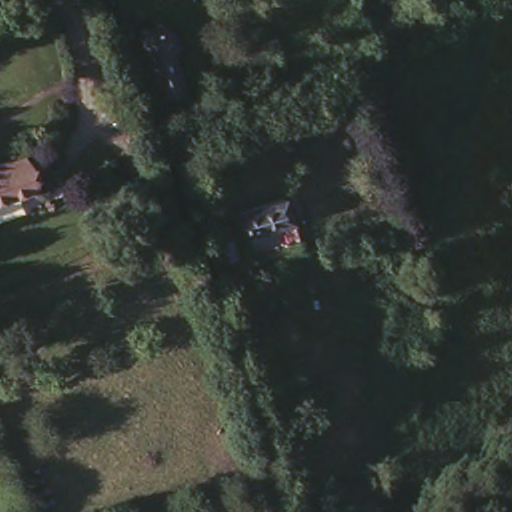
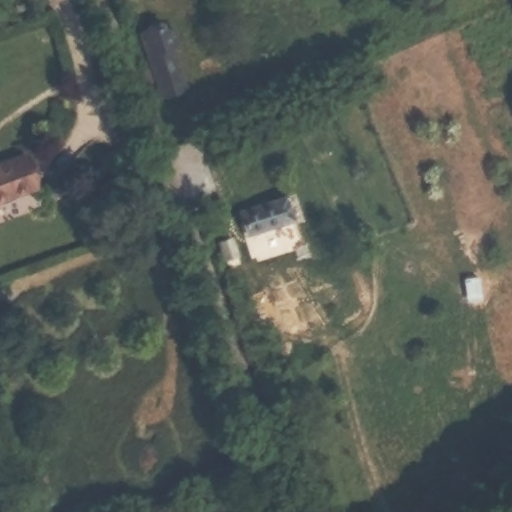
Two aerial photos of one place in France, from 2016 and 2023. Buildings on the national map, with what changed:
unchanged [(145,61),(156,58),(144,23),(167,15),(169,19),(176,17),(182,36),(176,39),(183,63),(161,71),(150,74),(145,61)]
unchanged [(33,154),(45,189),(0,207),(0,168),(33,154)]
unchanged [(186,179),(201,173),(209,196),(195,200),(186,179)]
unchanged [(248,229),(239,207),(281,192),(289,214),(248,229)]
unchanged [(231,220),(239,243),(224,248),(216,226),(231,220)]

